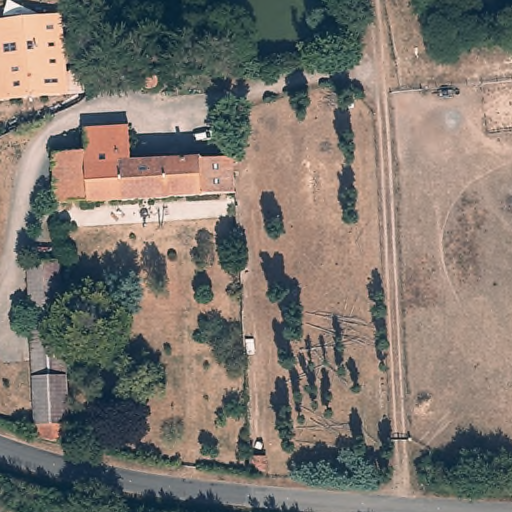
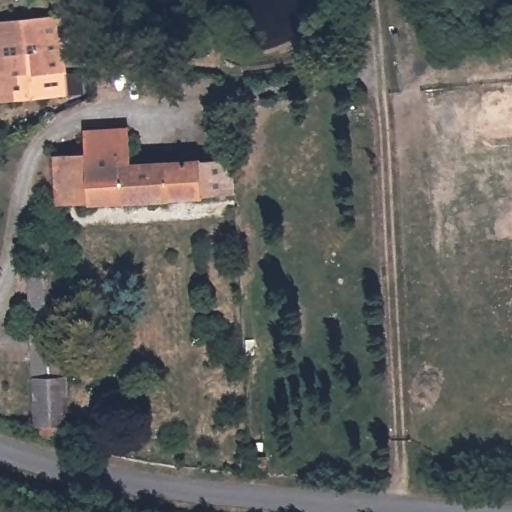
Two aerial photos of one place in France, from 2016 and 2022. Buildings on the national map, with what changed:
unchanged [(58,22),(62,79),(83,78),(85,99),(0,105),(0,27),(9,26),(52,23),(58,22)]
unchanged [(156,73),(157,86),(145,86),(145,90),(134,90),(135,99),(124,100),(122,70),(121,65),(145,63),(146,72),(156,73)]
unchanged [(92,158),(91,137),(134,136),(134,170),(92,171),(92,158)]
unchanged [(79,208),(66,208),(47,208),(46,158),(92,158),(92,171),(94,207),(79,208)]
unchanged [(167,205),(166,169),(235,166),(236,202),(167,205)]
unchanged [(134,170),(166,169),(167,205),(163,205),(94,207),(92,171),(134,170)]
unchanged [(71,449),(50,443),(41,440),(25,265),(57,262),(74,450),(71,449)]

